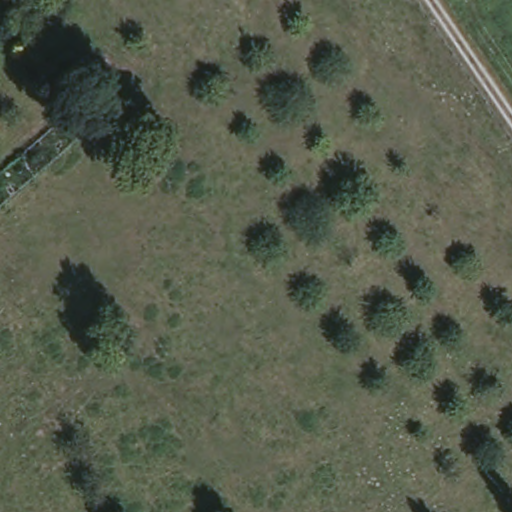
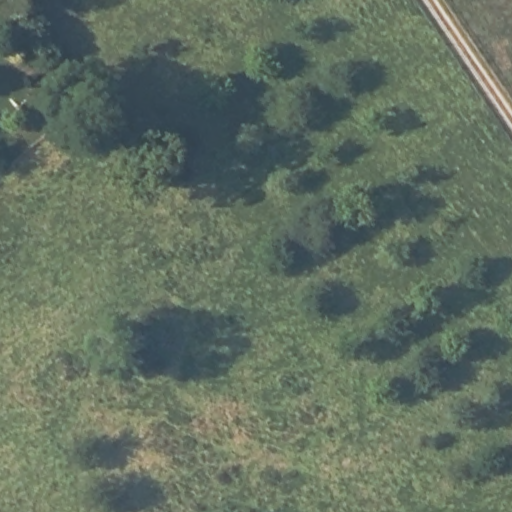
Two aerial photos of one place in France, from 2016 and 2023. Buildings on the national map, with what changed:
[]

